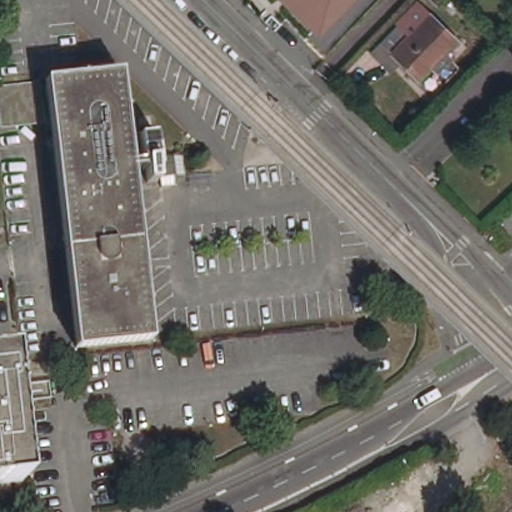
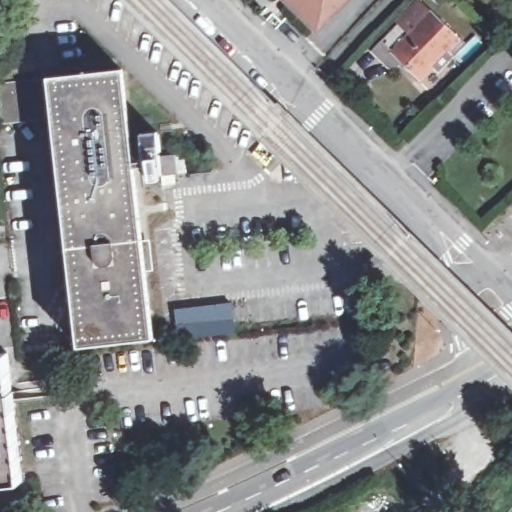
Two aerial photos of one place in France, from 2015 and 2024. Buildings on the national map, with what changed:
unchanged [(285,0),(356,0),(322,36),(285,0)]
unchanged [(383,52),(387,45),(429,4),(467,41),(456,53),(460,58),(447,72),(442,68),(430,80),(415,65),(405,74),(383,52)]
unchanged [(80,341),(50,74),(125,65),(155,333),(80,341)]
unchanged [(45,99),(45,103),(2,109),(0,87),(0,79),(42,74),(45,99)]
unchanged [(157,177),(152,178),(150,163),(147,163),(143,129),(160,128),(162,151),(188,148),(190,160),(191,169),(165,171),(165,162),(162,163),(162,177),(157,177)]
new [(175,310),(232,304),(235,334),(195,339),(177,325),(175,310)]
unchanged [(0,479),(0,350),(12,349),(26,476),(0,479)]

